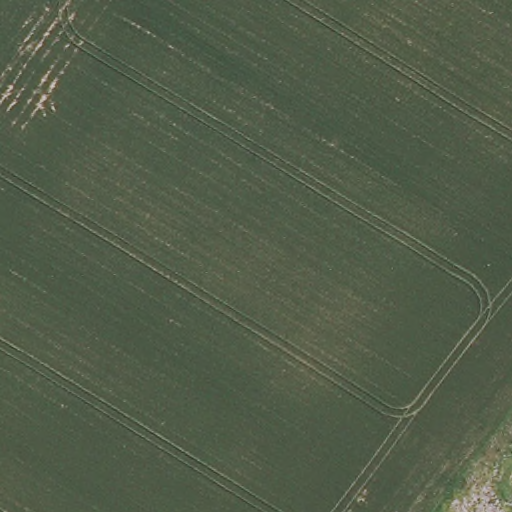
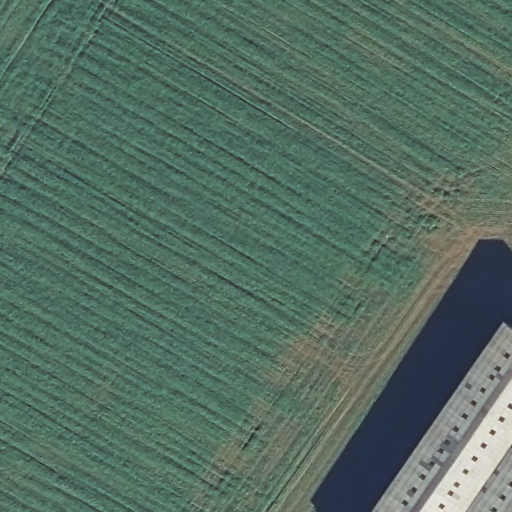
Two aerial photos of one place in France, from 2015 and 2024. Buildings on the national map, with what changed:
new [(505,335),(512,339),(512,512),(382,512),(505,335)]

